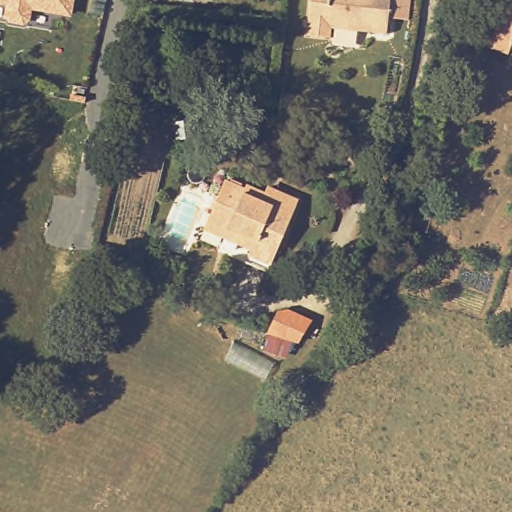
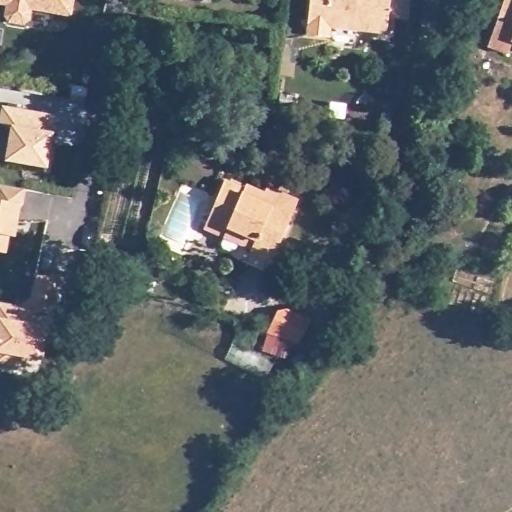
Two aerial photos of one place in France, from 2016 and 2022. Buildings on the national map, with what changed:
unchanged [(35,6),(33,18),(27,21),(14,19),(10,14),(12,2),(1,0),(76,0),(74,12),(35,6)]
unchanged [(332,28),(331,38),(307,35),(311,0),(391,0),(387,33),(332,28)]
unchanged [(484,44),(499,0),(512,0),(512,53),(484,44)]
new [(4,104),(58,113),(50,166),(7,159),(12,125),(0,123),(4,104)]
unchanged [(212,214),(227,178),(265,194),(269,186),(300,200),(297,204),(273,260),(255,253),(256,248),(226,237),(206,228),(212,214)]
new [(23,209),(21,208),(16,240),(10,240),(7,257),(0,256),(0,188),(25,192),(23,209)]
unchanged [(138,264),(135,280),(88,268),(91,252),(138,264)]
new [(30,299),(35,277),(55,280),(50,314),(36,312),(34,328),(47,330),(42,361),(26,358),(25,368),(0,364),(0,305),(19,307),(30,299)]
unchanged [(287,340),(266,334),(277,317),(298,324),(287,340)]

